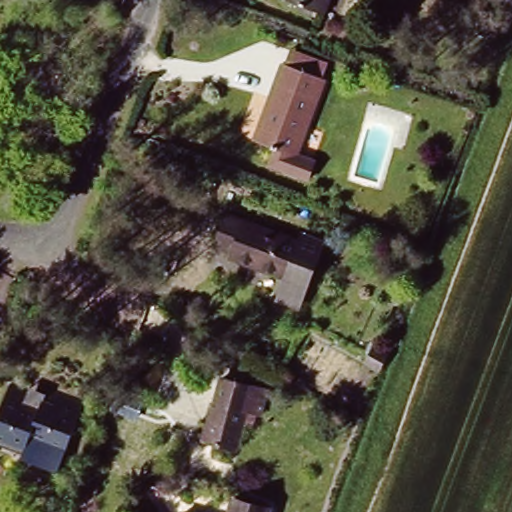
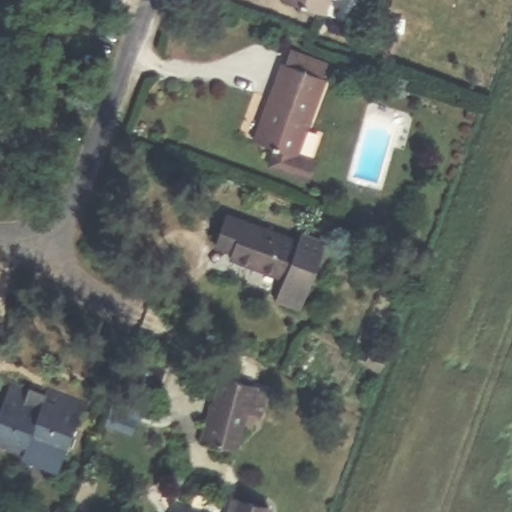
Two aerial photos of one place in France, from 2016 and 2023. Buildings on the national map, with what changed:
unchanged [(291,0),(323,0),(318,11),(291,0)]
unchanged [(308,172),(288,165),(267,158),(275,139),(253,132),(282,51),(325,65),(295,146),(315,152),(308,172)]
unchanged [(278,300),(288,273),(228,251),(230,246),(214,239),(225,212),(300,237),(303,230),(324,237),(308,281),(298,308),(278,300)]
unchanged [(238,445),(201,434),(213,395),(220,372),(238,377),(258,382),(238,445)]
unchanged [(27,386),(22,403),(36,408),(43,388),(79,400),(65,440),(29,428),(24,443),(0,436),(0,405),(8,379),(27,386)]
unchanged [(235,495),(271,502),(269,512),(231,512),(235,495)]
unchanged [(200,512),(181,512),(182,508),(200,512)]

